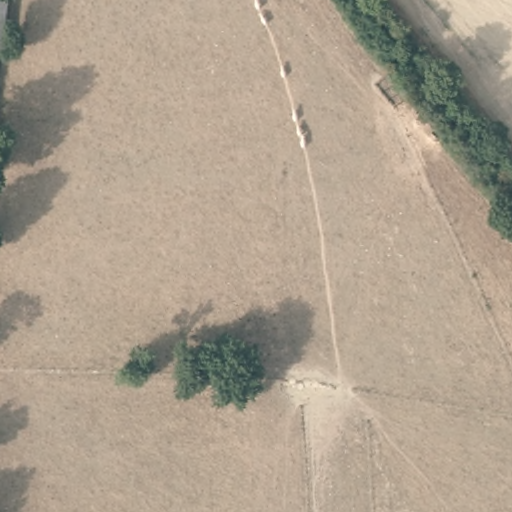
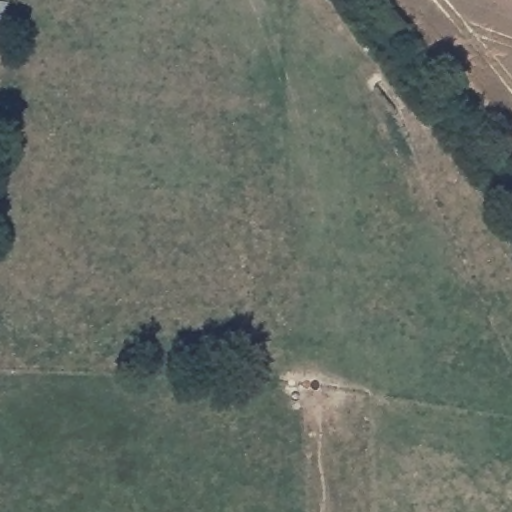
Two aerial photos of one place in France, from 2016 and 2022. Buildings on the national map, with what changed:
unchanged [(0,49),(0,0),(6,0),(1,49),(0,49)]

